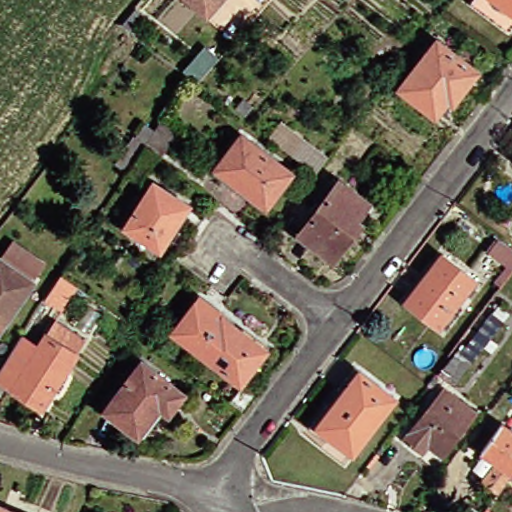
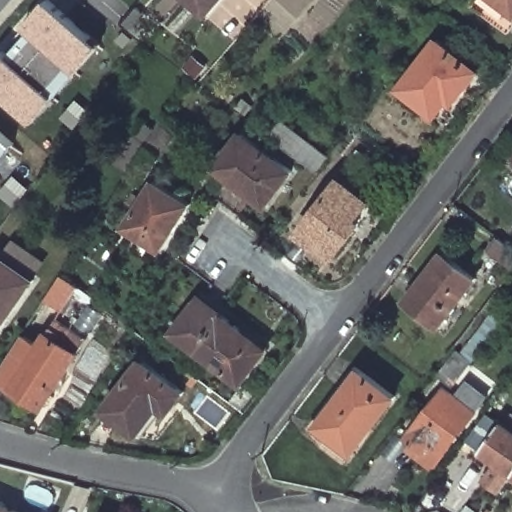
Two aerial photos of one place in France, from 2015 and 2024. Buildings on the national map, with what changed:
unchanged [(206,9),(195,0),(222,0),(211,13),(206,9)]
unchanged [(478,1),(479,0),(512,0),(512,26),(478,1)]
new [(31,35),(26,30),(30,25),(49,3),(94,42),(26,120),(0,96),(0,59),(5,54),(10,59),(31,35)]
unchanged [(137,34),(129,28),(139,13),(148,20),(137,34)]
new [(94,42),(96,40),(104,47),(35,127),(26,120),(94,42)]
unchanged [(469,90),(462,85),(437,118),(403,91),(441,42),(481,74),(469,90)]
demolished [(225,62),(201,88),(182,70),(204,43),(225,62)]
unchanged [(146,149),(163,122),(180,133),(162,161),(146,149)]
new [(0,144),(0,135),(5,139),(0,144)]
unchanged [(267,206),(231,178),(217,168),(240,137),(252,145),(291,174),(267,206)]
new [(11,144),(0,157),(0,144),(5,139),(11,144)]
unchanged [(126,229),(155,184),(190,206),(162,251),(126,229)]
unchanged [(342,185),(371,208),(368,213),(352,232),(357,236),(338,261),(303,235),(338,190),(342,185)]
unchanged [(488,246),(497,235),(512,246),(512,263),(488,246)]
unchanged [(0,260),(7,250),(42,273),(0,339),(0,260)]
unchanged [(410,303),(448,254),(480,279),(442,327),(410,303)]
unchanged [(65,316),(47,303),(64,278),(81,292),(65,316)]
unchanged [(266,359),(246,387),(179,336),(201,307),(206,299),(230,317),(227,321),(260,346),(270,353),(266,359)]
unchanged [(443,370),(461,347),(496,300),(512,311),(512,312),(477,360),(460,382),(443,370)]
unchanged [(46,346),(63,320),(94,340),(50,408),(2,377),(29,335),(46,346)]
unchanged [(172,412),(163,405),(141,432),(109,406),(146,358),(187,390),(172,412)]
unchanged [(405,398),(353,464),(312,434),(321,423),(347,390),(365,368),(405,398)]
unchanged [(411,438),(448,389),(480,412),(448,453),(433,442),(426,450),(411,438)]
unchanged [(485,455),(509,421),(512,423),(512,475),(485,455)]
unchanged [(0,512),(0,502),(24,512),(0,512)]

